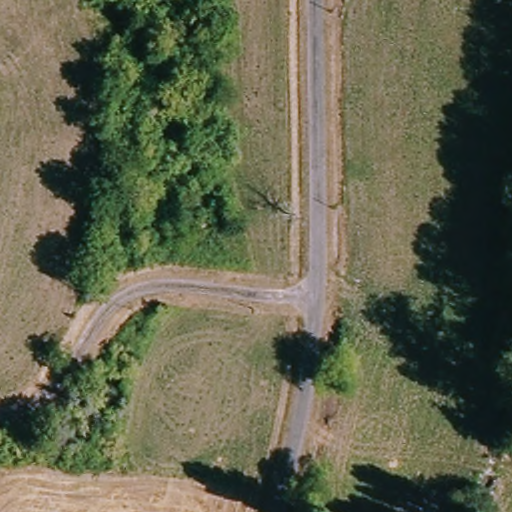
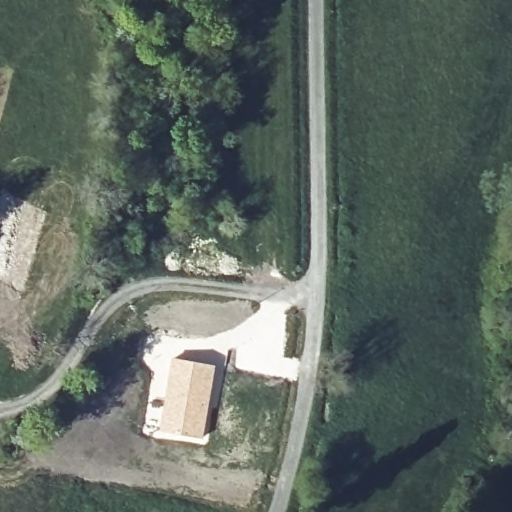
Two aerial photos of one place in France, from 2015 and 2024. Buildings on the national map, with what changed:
new [(170,357),(216,364),(203,439),(155,432),(170,357)]

